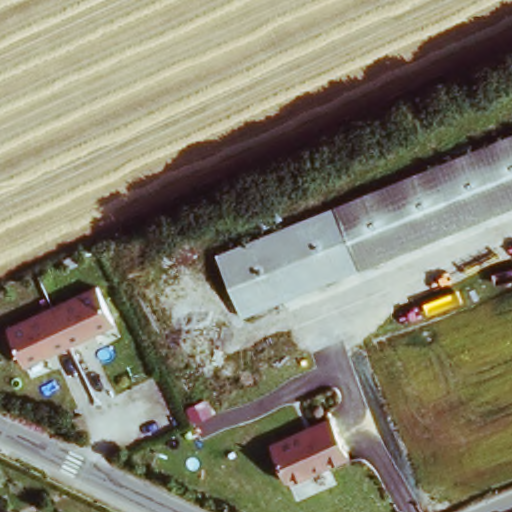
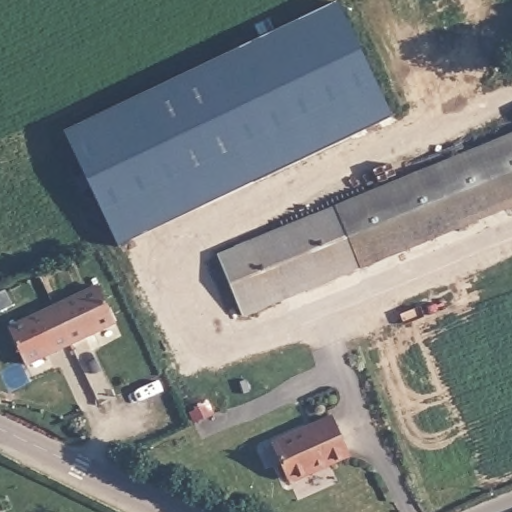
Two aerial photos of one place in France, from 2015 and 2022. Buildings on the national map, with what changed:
new [(64,134),(338,4),(392,117),(119,247),(64,134)]
unchanged [(512,202),(243,317),(219,261),(512,133),(512,202)]
demolished [(100,282),(118,319),(34,361),(12,325),(100,282)]
new [(97,287),(117,326),(27,368),(8,327),(97,287)]
unchanged [(292,477),(278,437),(339,411),(354,452),(332,461),(332,457),(317,463),(312,469),(292,477)]

